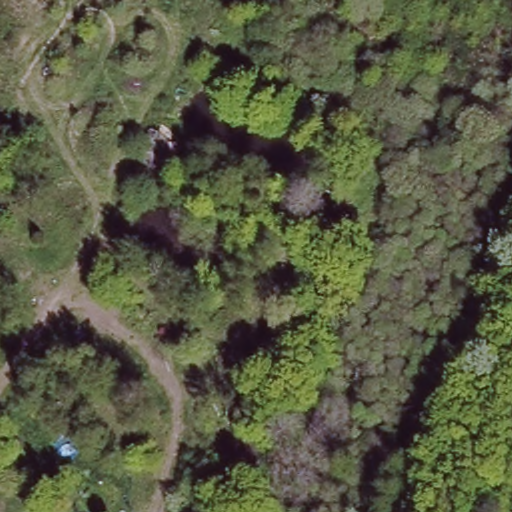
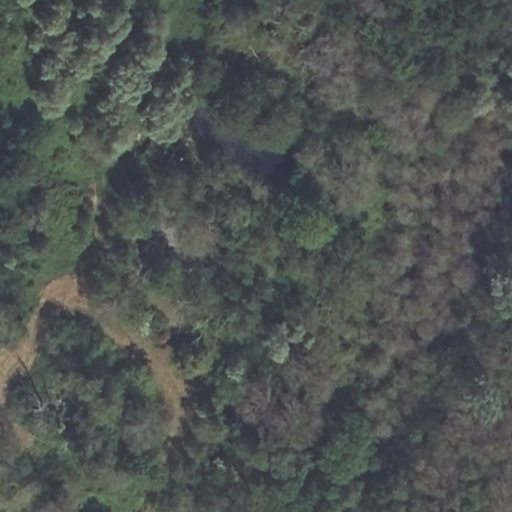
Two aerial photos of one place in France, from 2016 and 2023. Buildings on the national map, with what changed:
unchanged [(202,135),(194,155),(183,155),(170,176),(135,162),(160,112),(202,135)]

